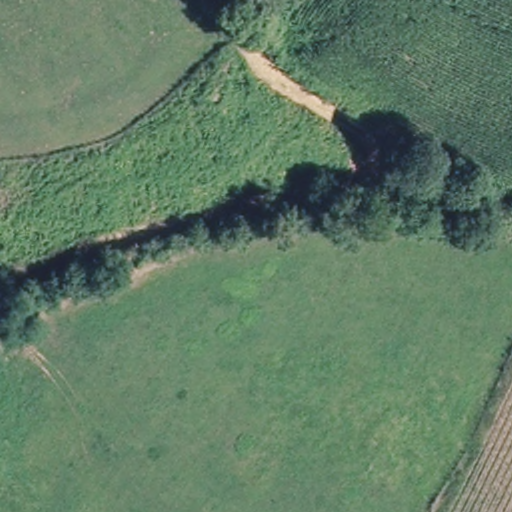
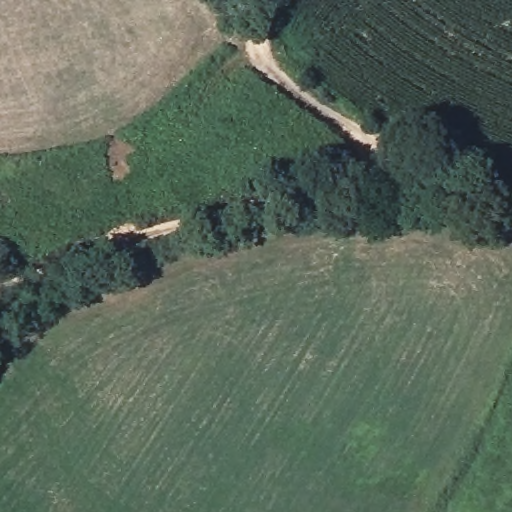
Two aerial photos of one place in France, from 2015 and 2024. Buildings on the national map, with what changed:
[]

